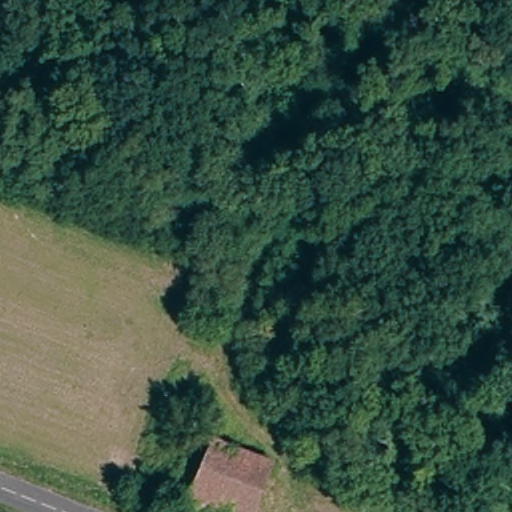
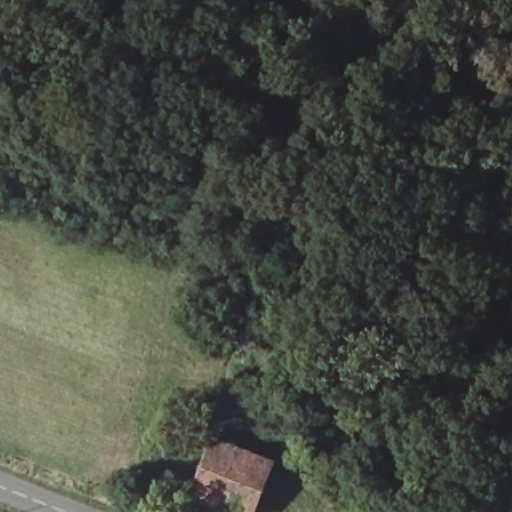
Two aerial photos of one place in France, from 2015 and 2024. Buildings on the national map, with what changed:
unchanged [(261,512),(245,512),(198,495),(222,442),(277,462),(261,512)]

